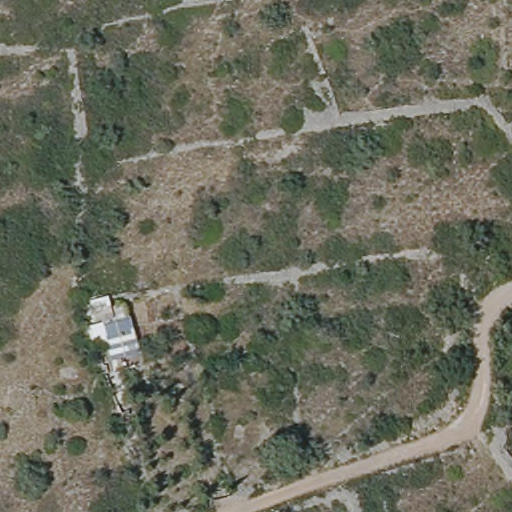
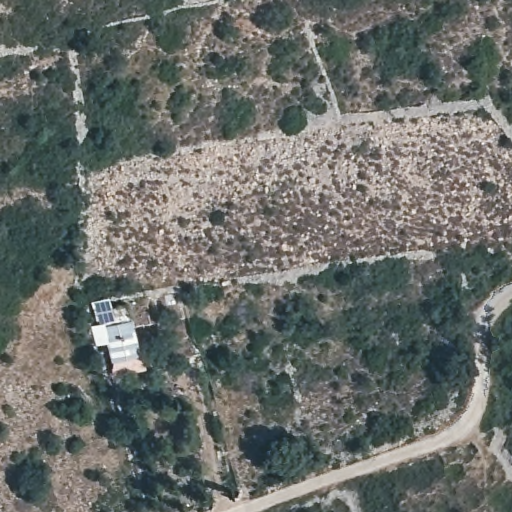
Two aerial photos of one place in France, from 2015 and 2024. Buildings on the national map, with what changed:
unchanged [(111,292),(114,312),(131,310),(144,355),(112,365),(102,319),(96,321),(90,299),(111,292)]

